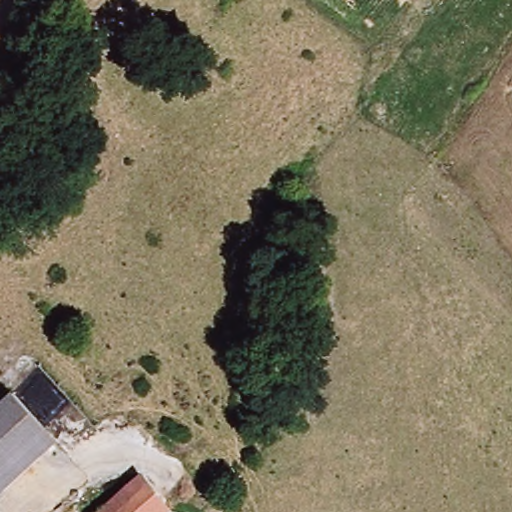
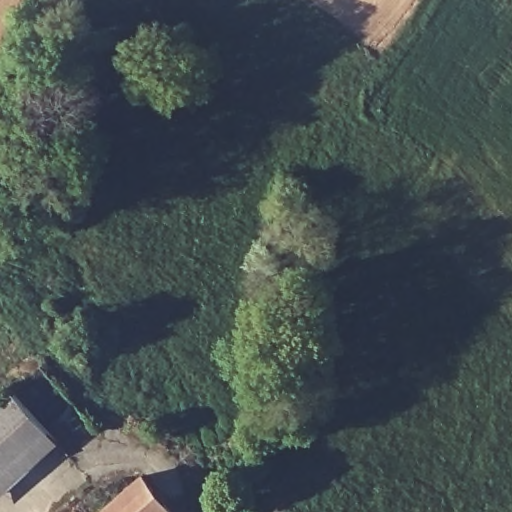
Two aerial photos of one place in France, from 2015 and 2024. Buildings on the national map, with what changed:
unchanged [(18,404),(50,439),(0,486),(0,420),(18,404)]
unchanged [(102,512),(140,476),(174,512),(102,512)]

